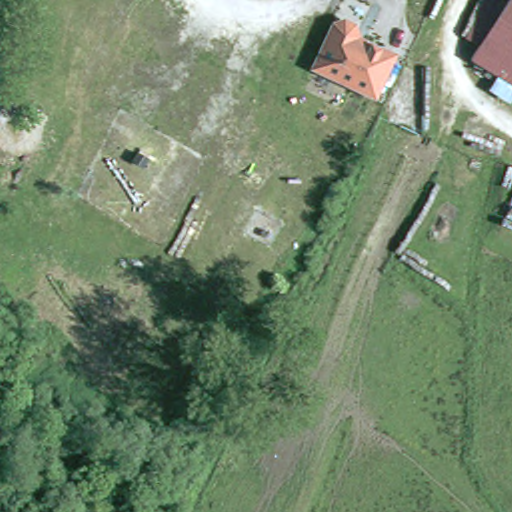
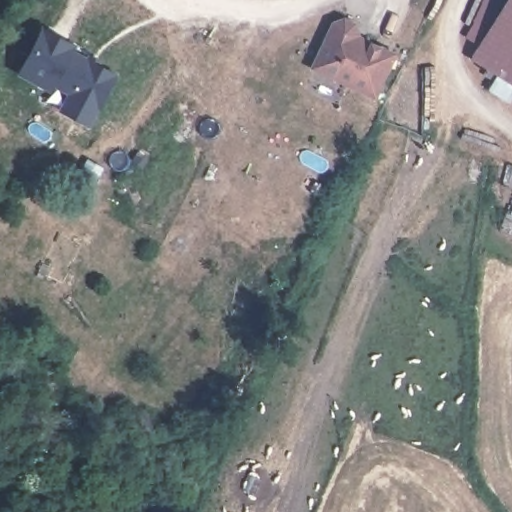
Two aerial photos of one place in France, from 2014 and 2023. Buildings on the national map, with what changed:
unchanged [(478,68),(484,57),(468,48),(478,31),(494,4),(509,13),(512,7),(512,87),(478,68)]
unchanged [(359,26),(354,37),(394,56),(377,101),(310,70),(331,20),(359,26)]
new [(76,46),(73,53),(118,74),(91,127),(59,113),(68,94),(53,87),(50,93),(17,75),(39,30),(76,46)]

